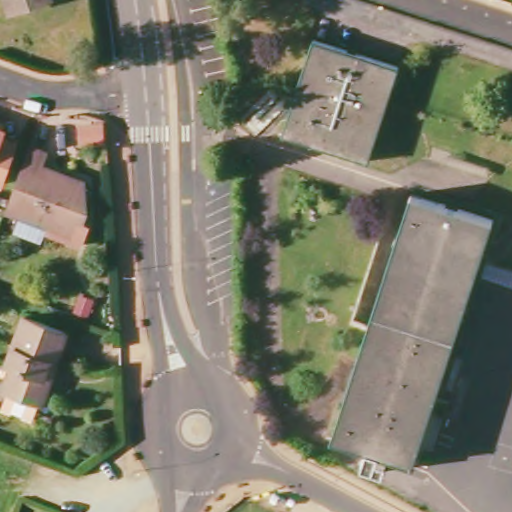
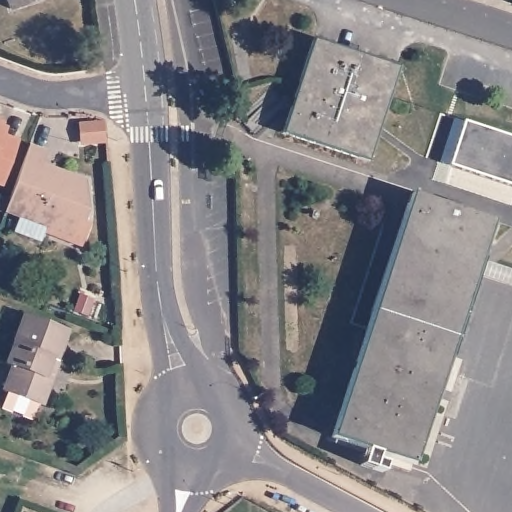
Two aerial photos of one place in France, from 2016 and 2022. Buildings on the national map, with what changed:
unchanged [(10,0),(31,0),(13,6),(10,0)]
unchanged [(397,67),(368,161),(283,133),(312,40),(397,67)]
new [(464,121),(512,136),(512,185),(451,164),(464,121)]
unchanged [(3,131),(1,139),(17,144),(5,179),(0,177),(0,129),(3,131)]
unchanged [(29,147),(45,153),(41,166),(82,181),(76,200),(88,205),(81,223),(88,226),(81,246),(47,234),(49,227),(6,212),(29,147)]
unchanged [(201,182),(193,182),(193,168),(201,168),(201,182)]
unchanged [(411,196),(494,221),(416,467),(336,446),(411,196)]
unchanged [(53,356),(57,359),(43,395),(6,382),(14,359),(7,356),(19,326),(58,340),(53,356)]

